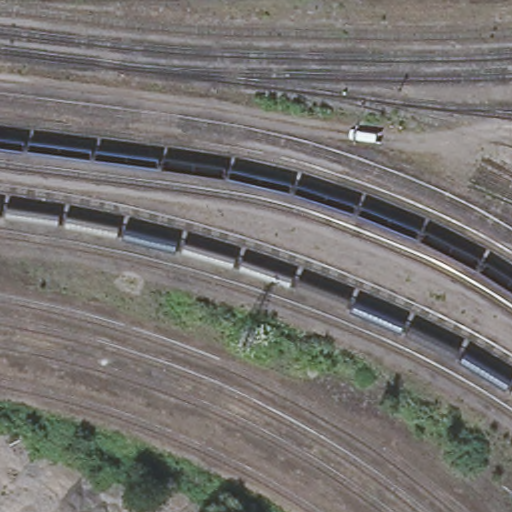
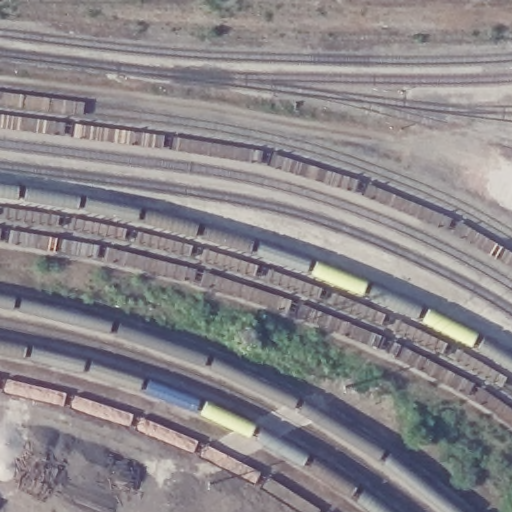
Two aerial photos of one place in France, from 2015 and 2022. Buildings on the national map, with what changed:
unchanged [(243,113),(241,125),(228,123),(230,111),(243,113)]

